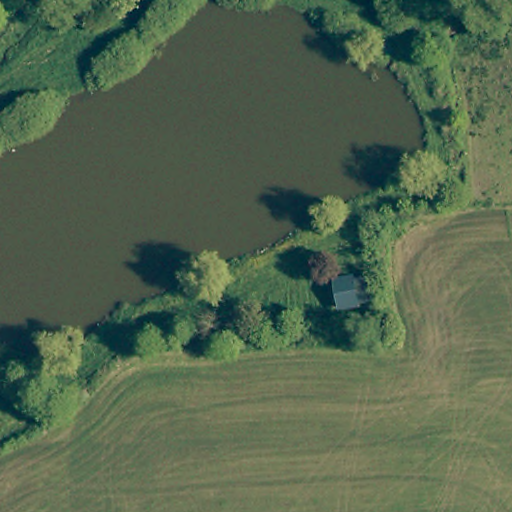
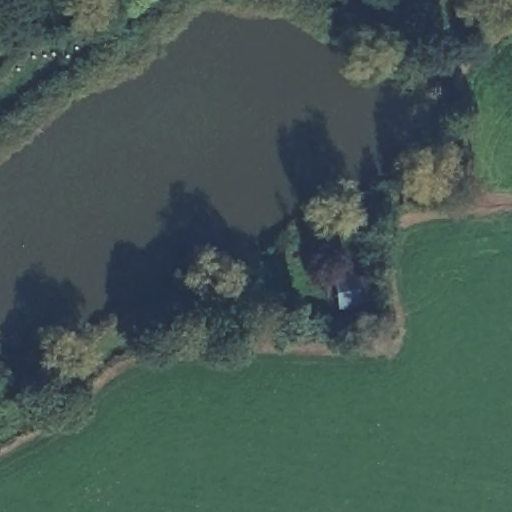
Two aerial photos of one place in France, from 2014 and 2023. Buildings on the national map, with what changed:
unchanged [(356,273),(357,277),(369,275),(374,300),(361,303),(361,307),(340,311),(334,276),(356,273)]

